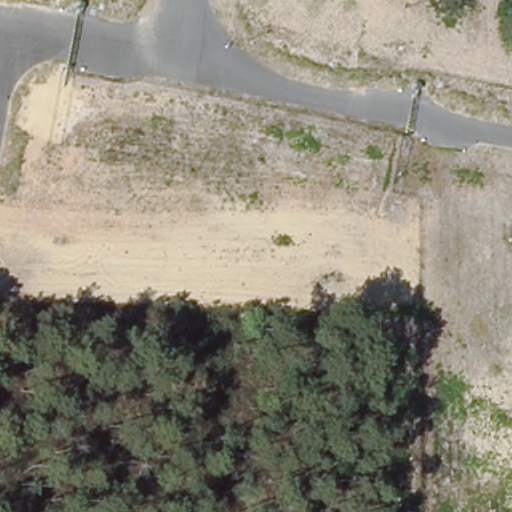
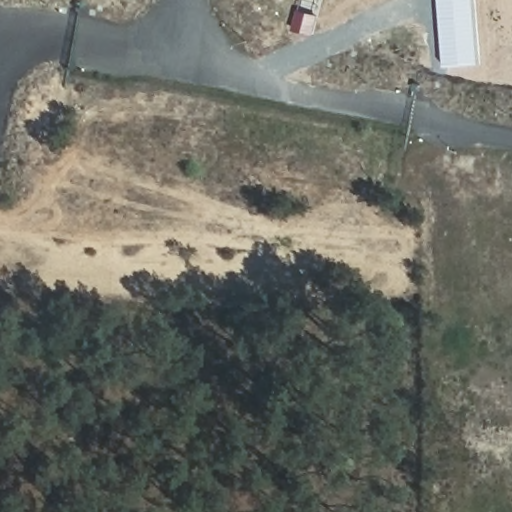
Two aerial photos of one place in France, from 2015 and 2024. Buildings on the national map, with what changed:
new [(448,66),(442,0),(477,0),(483,63),(448,66)]

